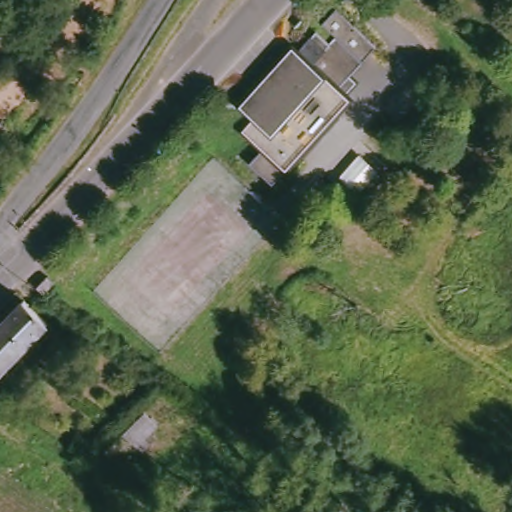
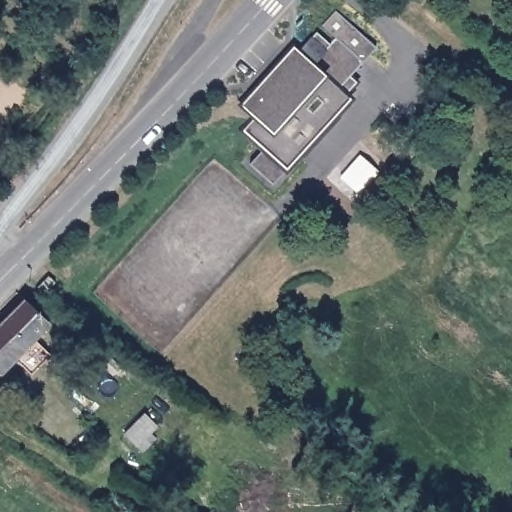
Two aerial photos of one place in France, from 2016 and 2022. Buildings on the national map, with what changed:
unchanged [(328,15),(368,52),(355,67),(331,92),(345,106),(268,188),(265,190),(253,179),(242,169),(257,155),(237,135),(250,121),(237,110),(290,53),(293,56),(312,36),(325,47),(330,44),(315,30),(328,15)]
unchanged [(0,70),(2,69),(6,72),(0,79),(0,70)]
unchanged [(55,272),(58,276),(61,278),(50,290),(47,286),(43,282),(55,272)]
unchanged [(0,370),(0,326),(25,300),(47,323),(0,370)]
unchanged [(162,428),(148,441),(145,438),(142,435),(130,422),(152,402),(164,415),(157,422),(160,425),(162,428)]

